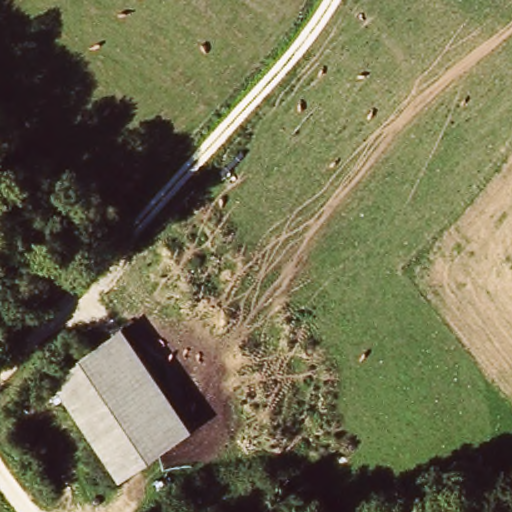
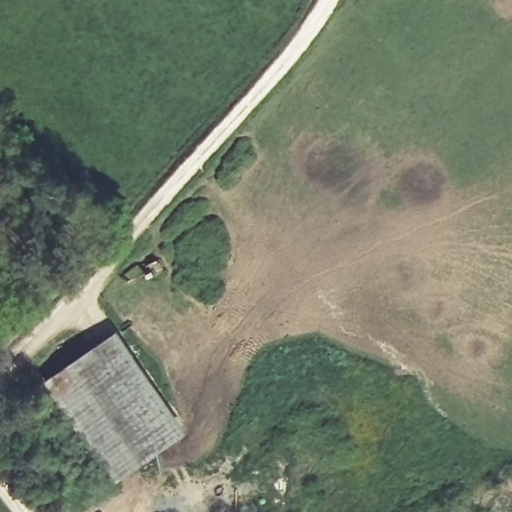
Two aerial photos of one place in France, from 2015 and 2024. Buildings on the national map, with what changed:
unchanged [(111,333),(180,433),(124,472),(56,372),(111,333)]

